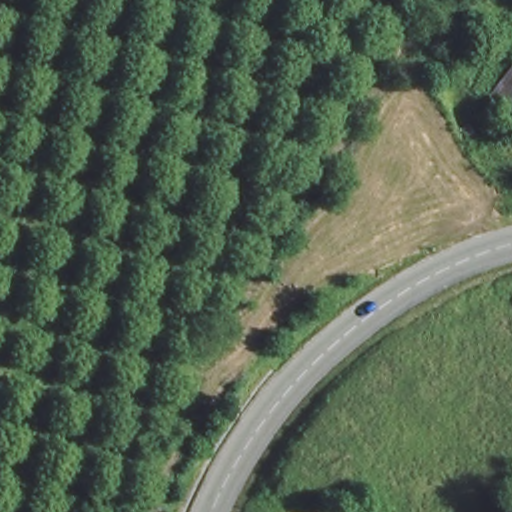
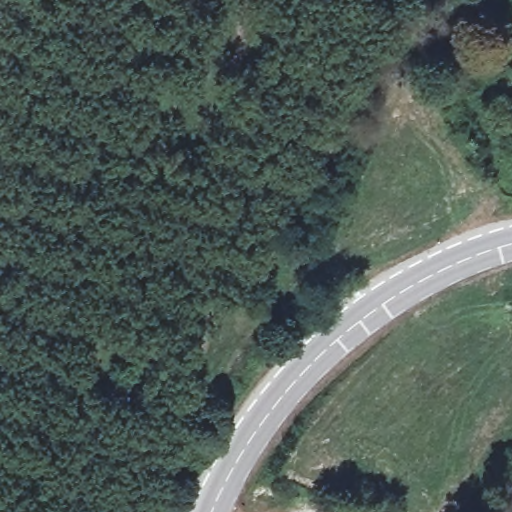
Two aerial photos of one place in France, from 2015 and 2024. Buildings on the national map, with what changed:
unchanged [(510,130),(483,106),(512,73),(512,127),(510,130)]

